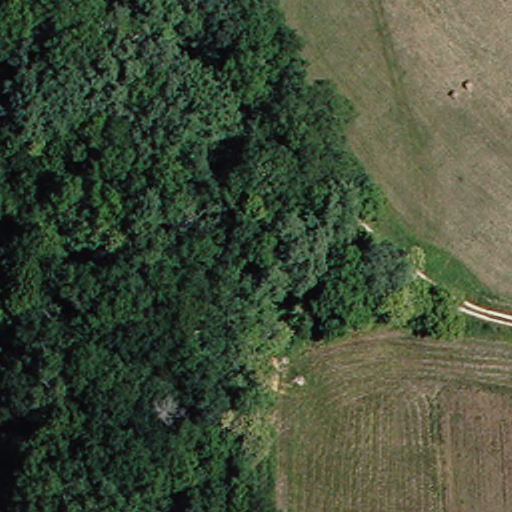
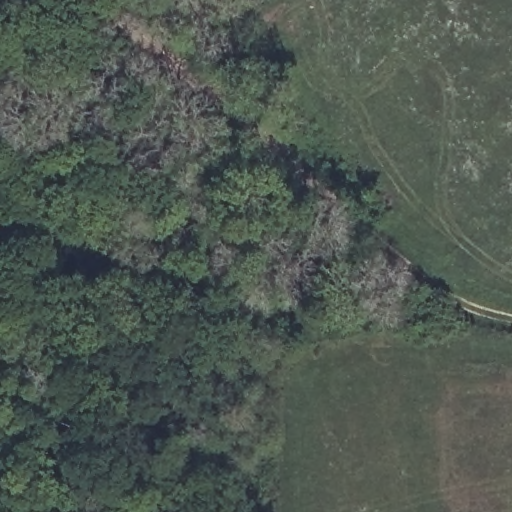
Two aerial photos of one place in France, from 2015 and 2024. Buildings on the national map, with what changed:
[]

